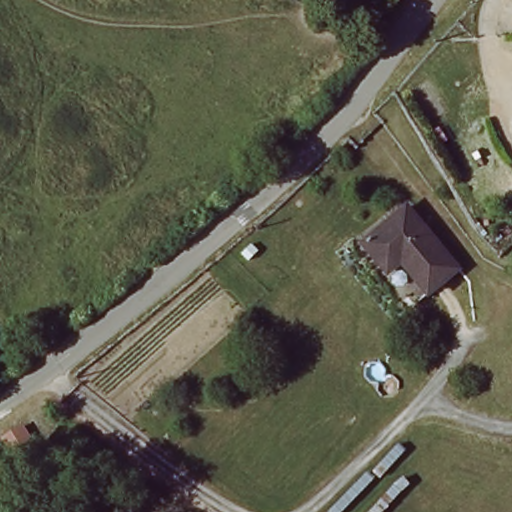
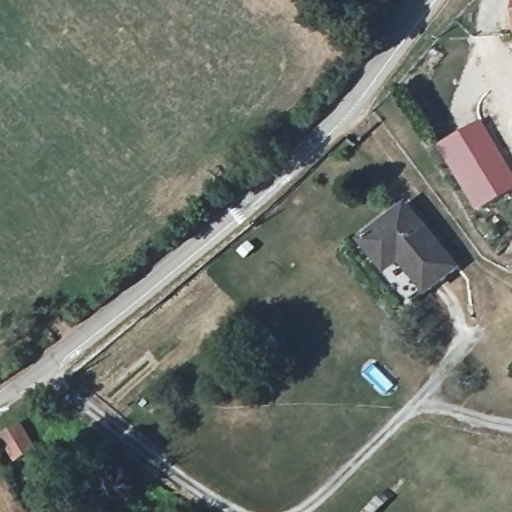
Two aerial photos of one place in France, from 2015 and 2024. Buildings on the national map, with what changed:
new [(487,120),(512,164),(512,192),(487,209),(449,145),(487,120)]
unchanged [(403,204),(458,263),(429,292),(397,257),(385,267),(362,242),(403,204)]
unchanged [(0,432),(0,430),(20,420),(38,456),(15,466),(0,432)]

